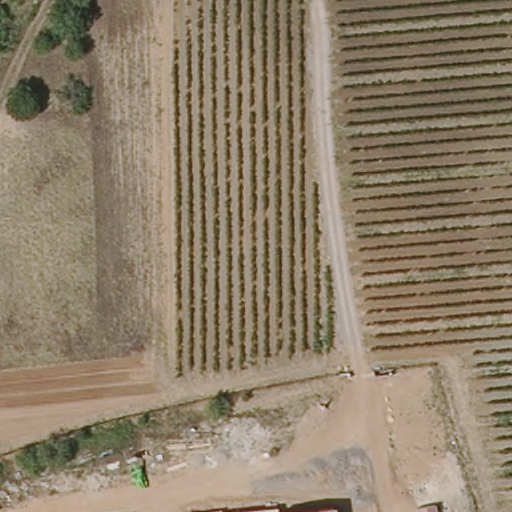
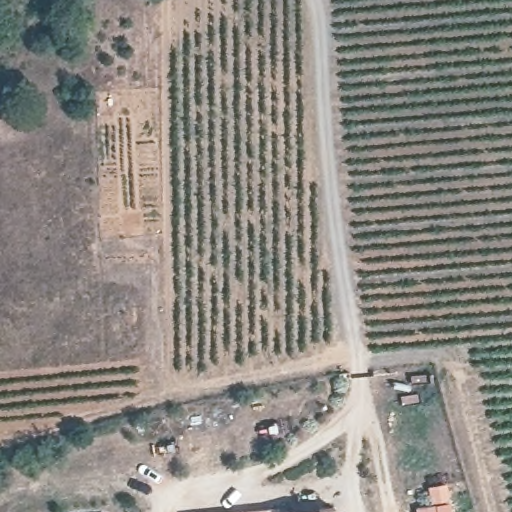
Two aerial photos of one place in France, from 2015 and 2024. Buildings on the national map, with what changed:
unchanged [(437,503),(438,512),(416,512),(415,507),(437,503)]
unchanged [(335,512),(293,512),(334,506),(335,512)]
unchanged [(278,512),(243,512),(278,508),(278,512)]
unchanged [(222,512),(207,512),(221,510),(222,512)]

